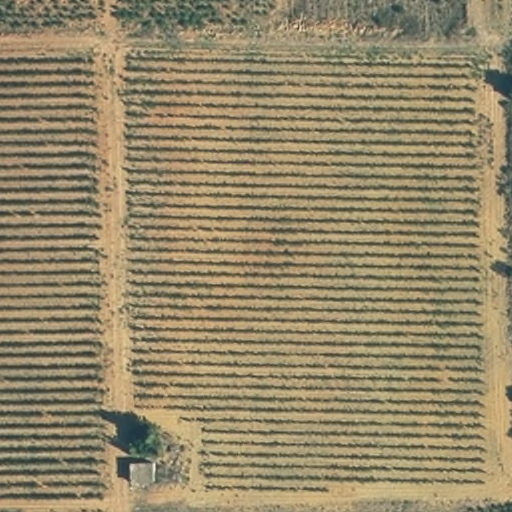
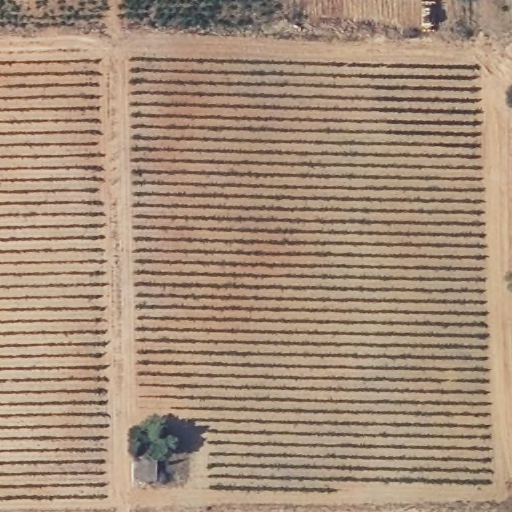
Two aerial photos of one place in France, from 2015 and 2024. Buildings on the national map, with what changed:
unchanged [(129,461),(153,460),(154,484),(130,485),(129,461)]

